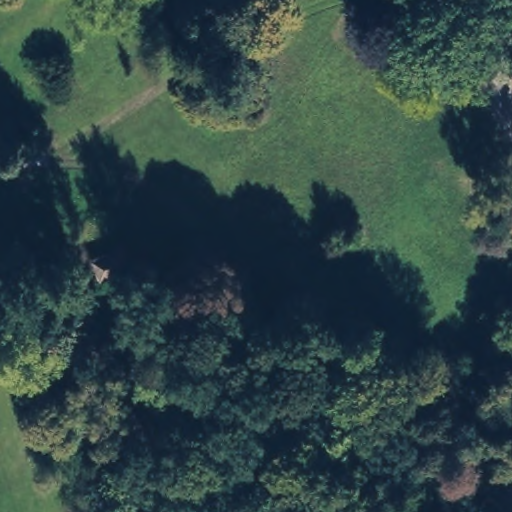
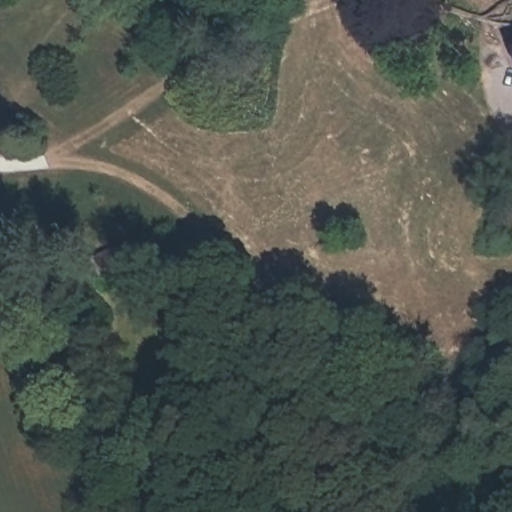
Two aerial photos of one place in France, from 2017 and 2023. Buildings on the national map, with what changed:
unchanged [(126,239),(134,260),(102,273),(94,252),(126,239)]

